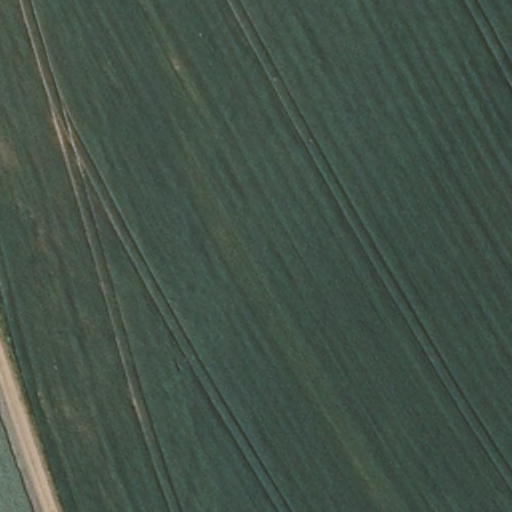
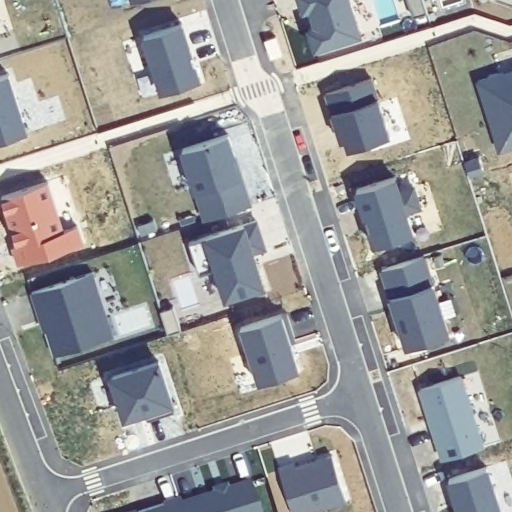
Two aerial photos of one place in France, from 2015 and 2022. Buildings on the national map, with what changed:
new [(129,0),(147,0),(129,5),(129,0)]
new [(316,51),(309,31),(316,29),(309,11),(304,13),(299,0),(349,0),(361,37),(316,51)]
new [(416,19),(410,0),(423,0),(428,15),(416,19)]
new [(496,2),(496,0),(512,0),(512,7),(496,2)]
new [(183,29),(201,85),(161,98),(141,43),(183,29)]
new [(0,41),(0,38),(1,41),(0,41)]
new [(276,39),(283,57),(272,60),(266,43),(276,39)]
new [(494,131),(479,83),(512,73),(512,150),(501,153),(494,131)]
new [(28,135),(0,144),(0,79),(9,76),(28,135)]
new [(229,137),(236,158),(234,159),(240,179),(242,178),(251,208),(206,222),(183,151),(229,137)]
new [(479,160),(484,175),(469,180),(465,165),(479,160)]
new [(395,179),(400,193),(414,189),(421,209),(407,214),(414,236),(375,249),(357,192),(395,179)]
new [(48,186),(63,232),(76,228),(83,249),(16,270),(10,251),(14,250),(0,201),(48,186)]
new [(256,223),(266,252),(254,256),(265,290),(227,302),(217,271),(201,277),(190,244),(256,223)]
new [(424,258),(450,337),(408,350),(383,271),(424,258)]
new [(93,275),(113,339),(55,357),(43,322),(41,322),(32,295),(93,275)]
new [(280,321),(297,377),(258,390),(239,333),(280,321)]
new [(160,364),(176,413),(148,422),(146,414),(125,420),(113,379),(160,364)]
new [(461,379),(484,449),(444,462),(421,391),(461,379)]
new [(295,464),(296,469),(333,457),(348,503),(320,512),(293,512),(279,470),(295,464)]
new [(488,469),(501,512),(459,512),(450,481),(488,469)]
new [(213,494),(226,490),(226,494),(251,486),(259,512),(183,512),(181,508),(214,498),(213,494)]
new [(180,503),(181,508),(183,512),(154,512),(180,503)]

